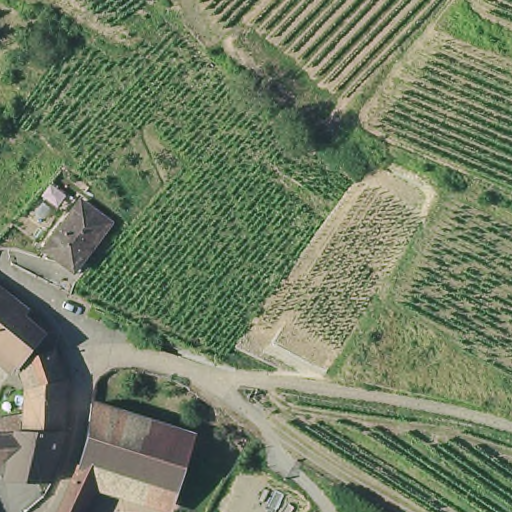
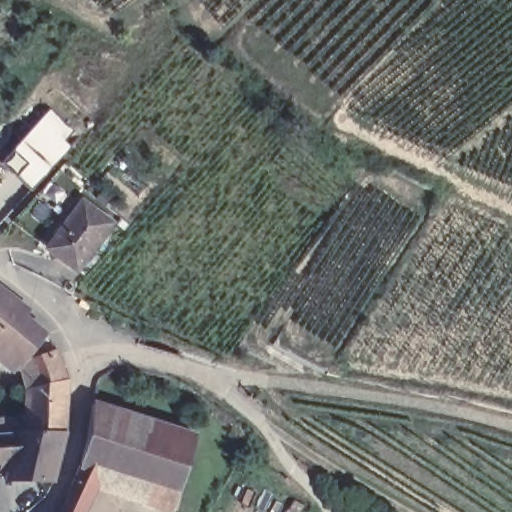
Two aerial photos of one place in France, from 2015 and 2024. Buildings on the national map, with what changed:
new [(51,107),(75,130),(81,136),(72,146),(31,190),(1,162),(7,155),(51,107)]
unchanged [(76,275),(49,254),(84,207),(112,228),(76,275)]
unchanged [(0,352),(0,289),(22,305),(17,311),(21,315),(43,334),(18,363),(17,365),(0,352)]
unchanged [(0,460),(0,421),(25,416),(26,388),(18,363),(56,349),(68,381),(66,431),(64,431),(52,481),(26,481),(5,480),(9,460),(0,460)]
unchanged [(152,493),(75,469),(81,446),(88,409),(170,434),(152,493)]
unchanged [(192,440),(173,500),(152,493),(170,434),(192,440)]
unchanged [(61,502),(75,469),(94,481),(77,510),(75,512),(57,512),(61,502)]
demolished [(131,510),(134,512),(129,512),(131,510)]

